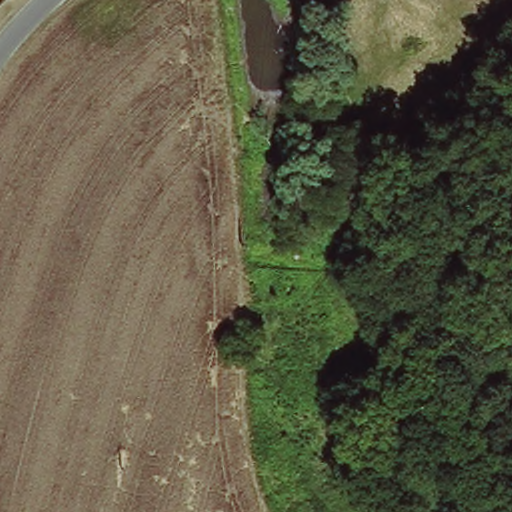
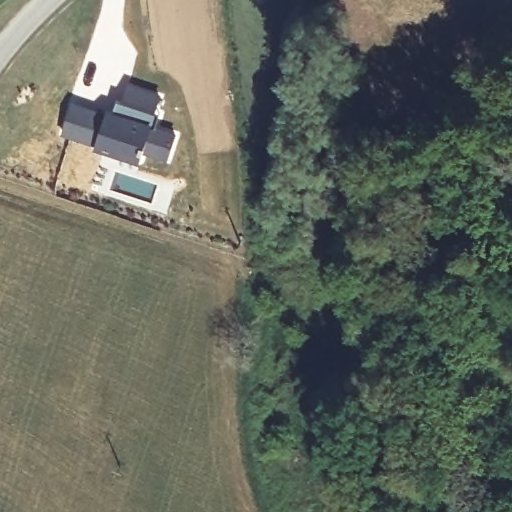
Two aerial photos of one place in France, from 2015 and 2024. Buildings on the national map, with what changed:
new [(96,146),(97,143),(80,138),(63,133),(72,105),(89,110),(106,115),(107,112),(112,114),(117,99),(123,101),(128,86),(160,96),(155,111),(161,113),(156,127),(176,134),(167,159),(144,151),(142,152),(140,160),(118,153),(96,146)]

